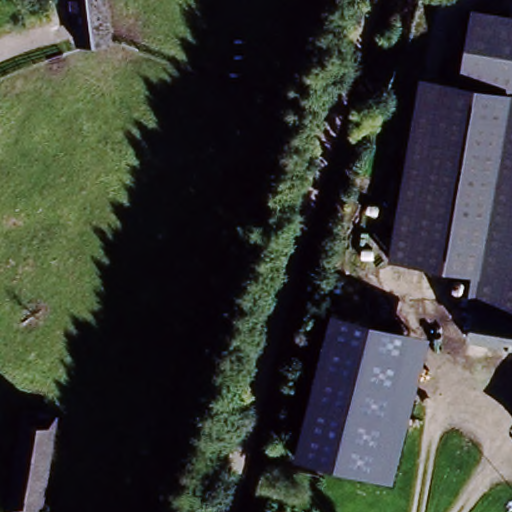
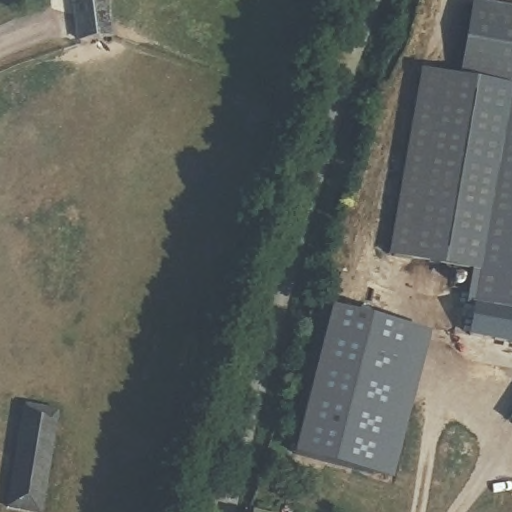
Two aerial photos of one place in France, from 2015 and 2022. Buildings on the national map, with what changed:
unchanged [(71,0),(104,0),(109,39),(76,42),(71,0)]
unchanged [(464,306),(469,272),(389,253),(420,71),(457,78),(471,0),(512,8),(512,344),(467,337),(472,306),(464,306)]
unchanged [(331,308),(428,333),(392,479),(295,455),(331,308)]
unchanged [(37,512),(19,512),(5,509),(23,411),(55,417),(37,512)]
unchanged [(512,419),(512,421),(511,420),(512,419)]
unchanged [(260,512),(254,512),(255,510),(260,512)]

